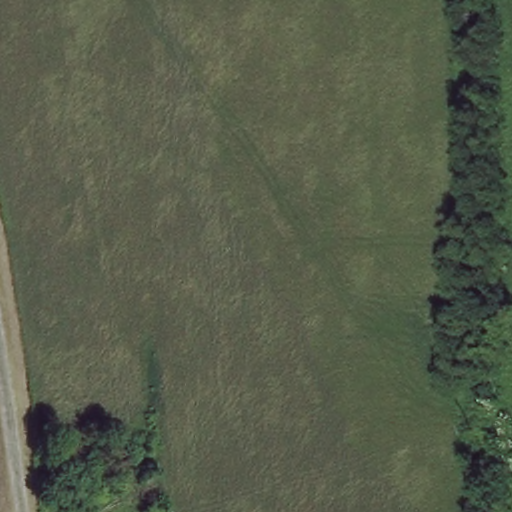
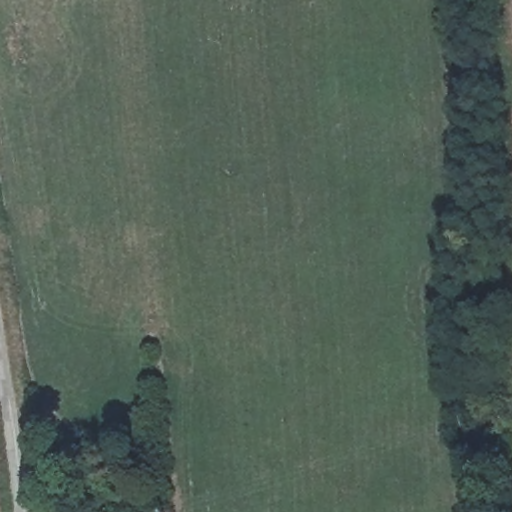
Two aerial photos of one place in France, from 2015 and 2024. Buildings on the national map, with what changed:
[]

